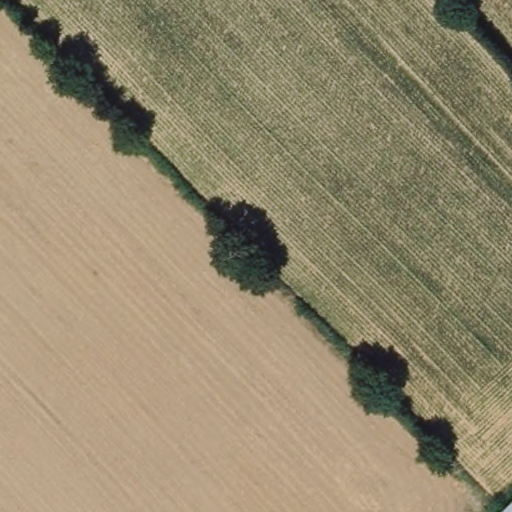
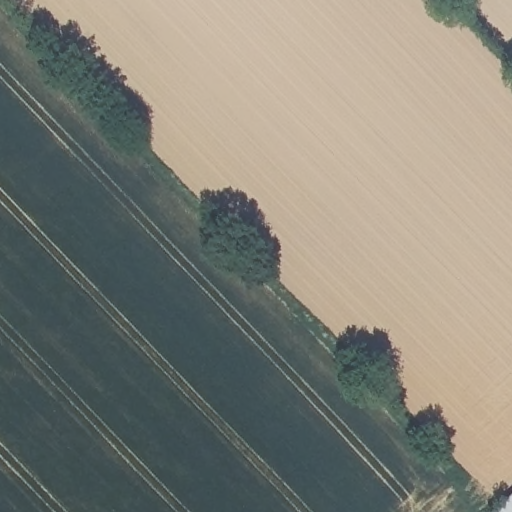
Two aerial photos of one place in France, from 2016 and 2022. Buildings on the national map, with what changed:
unchanged [(495,512),(512,496),(512,512),(495,512)]

